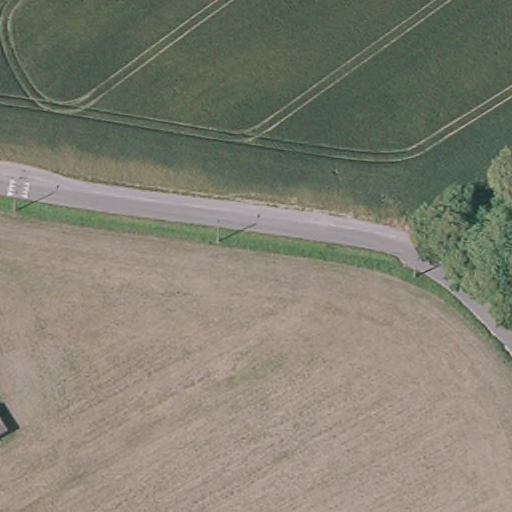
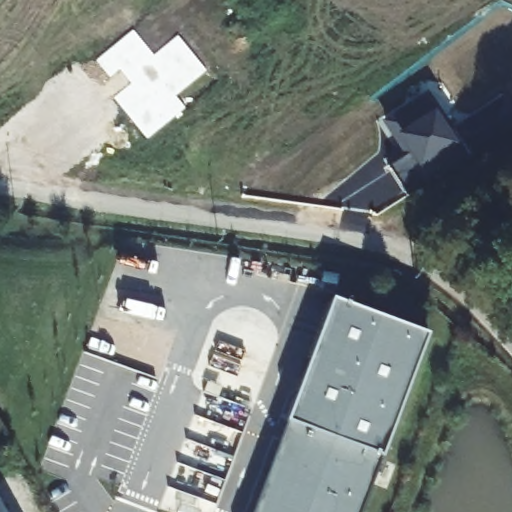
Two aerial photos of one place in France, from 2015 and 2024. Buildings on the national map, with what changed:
new [(153,55),(178,34),(207,70),(176,96),(186,107),(146,139),(114,99),(133,83),(120,69),(109,78),(95,61),(133,30),(153,55)]
new [(403,156),(381,121),(428,91),(453,129),(503,96),(512,110),(512,126),(406,195),(389,166),(403,156)]
new [(361,512),(252,512),(338,303),(429,334),(361,512)]
unchanged [(8,433),(0,438),(0,420),(8,433)]
new [(0,512),(0,506),(3,512),(0,512)]

